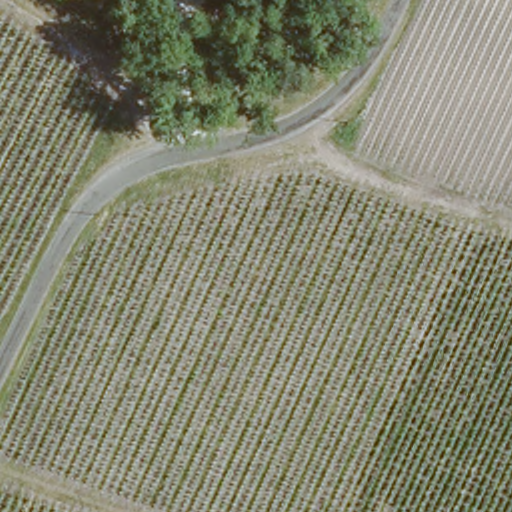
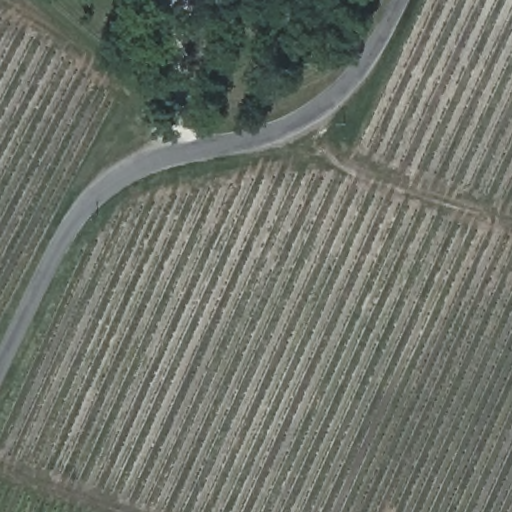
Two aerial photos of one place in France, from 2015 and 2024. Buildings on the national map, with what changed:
[]

